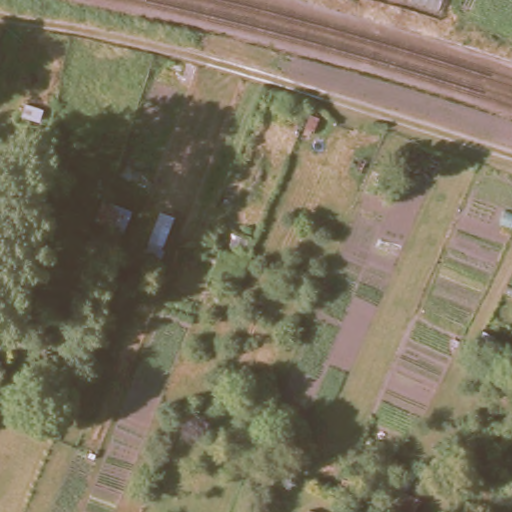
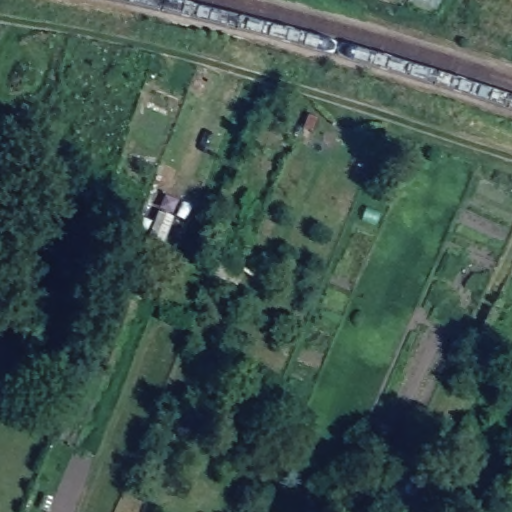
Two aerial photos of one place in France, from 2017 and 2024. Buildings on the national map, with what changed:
unchanged [(92,222),(100,198),(127,211),(117,236),(92,222)]

